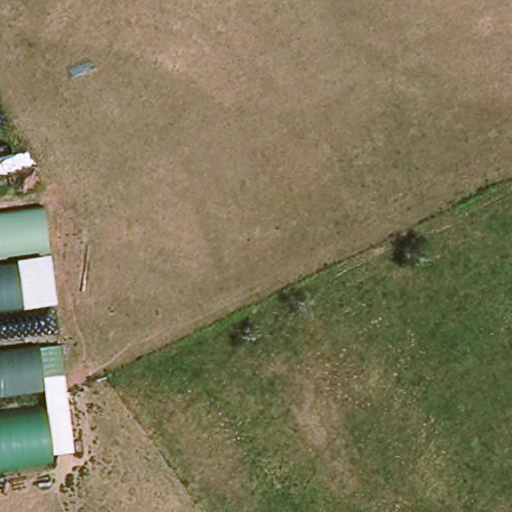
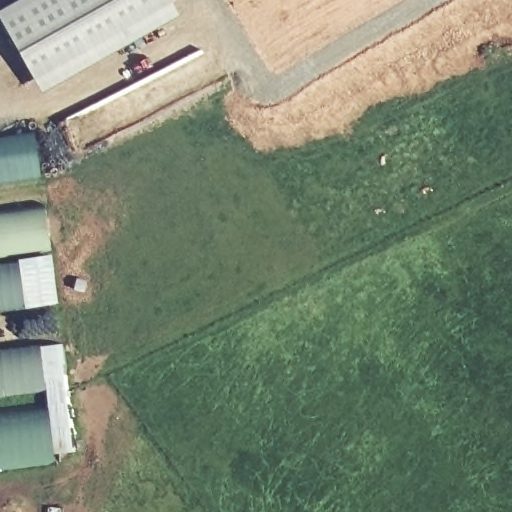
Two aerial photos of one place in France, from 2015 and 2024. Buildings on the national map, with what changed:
new [(41,95),(0,22),(0,12),(22,0),(171,0),(181,17),(41,95)]
new [(43,178),(0,184),(0,138),(34,133),(43,178)]
new [(58,304),(0,313),(0,215),(45,208),(58,304)]
unchanged [(63,345),(78,453),(54,455),(0,464),(0,413),(48,406),(46,389),(0,395),(0,347),(40,341),(63,345)]

